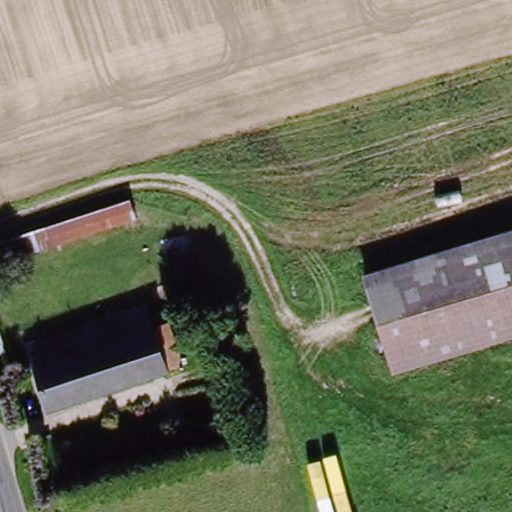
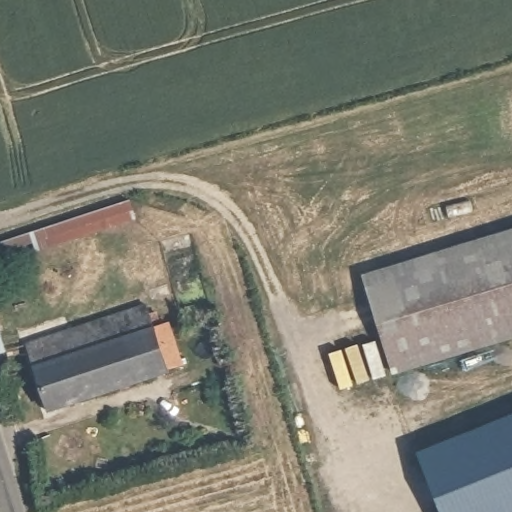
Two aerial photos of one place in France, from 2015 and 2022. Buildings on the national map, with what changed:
unchanged [(0,266),(0,243),(135,199),(132,223),(0,266)]
unchanged [(361,278),(512,231),(512,343),(394,377),(361,278)]
unchanged [(153,331),(170,326),(184,371),(49,412),(30,351),(147,314),(153,331)]
unchanged [(3,348),(0,350),(0,340),(3,348)]
new [(440,512),(417,453),(512,416),(512,512),(440,512)]

